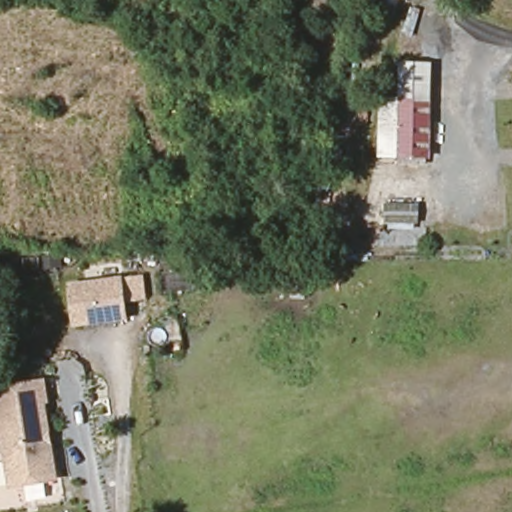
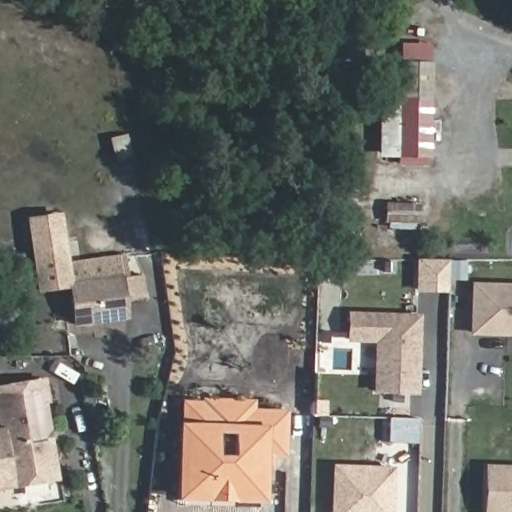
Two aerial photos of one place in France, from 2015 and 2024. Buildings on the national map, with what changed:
new [(430,159),(378,158),(380,97),(398,97),(398,61),(431,62),(430,159)]
demolished [(422,155),(387,154),(390,99),(424,100),(422,155)]
unchanged [(419,203),(419,225),(386,225),(386,203),(419,203)]
new [(68,262),(72,288),(67,289),(36,293),(27,219),(61,214),(68,262)]
new [(128,277),(142,275),(146,298),(126,300),(128,320),(72,327),(67,289),(72,288),(68,262),(125,254),(128,277)]
demolished [(67,288),(116,278),(124,315),(75,324),(67,288)]
new [(469,335),(471,283),(512,284),(512,336),(469,335)]
new [(372,394),(373,344),(345,343),(346,312),(421,314),(418,395),(372,394)]
unchanged [(44,402),(40,403),(56,481),(12,489),(0,432),(0,391),(40,384),(44,402)]
new [(181,401),(202,401),(202,399),(255,401),(254,409),(287,411),(285,459),(273,459),(272,469),(266,469),(264,504),(177,502),(179,424),(181,401)]
new [(417,420),(416,444),(387,443),(388,419),(417,420)]
new [(0,491),(0,432),(12,489),(0,491)]
new [(484,464),(512,465),(512,512),(482,512),(484,464)]
new [(333,465),(395,467),(393,512),(331,512),(333,465)]

